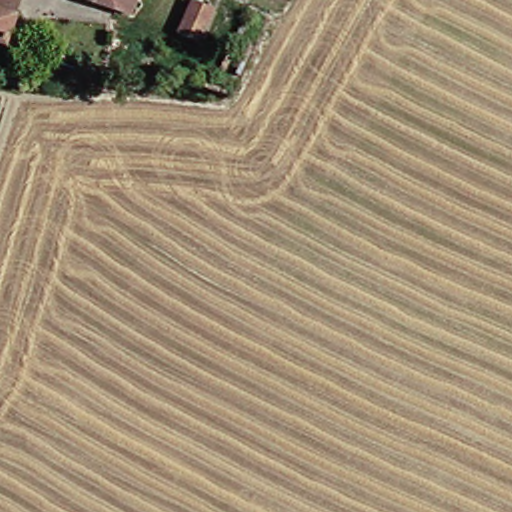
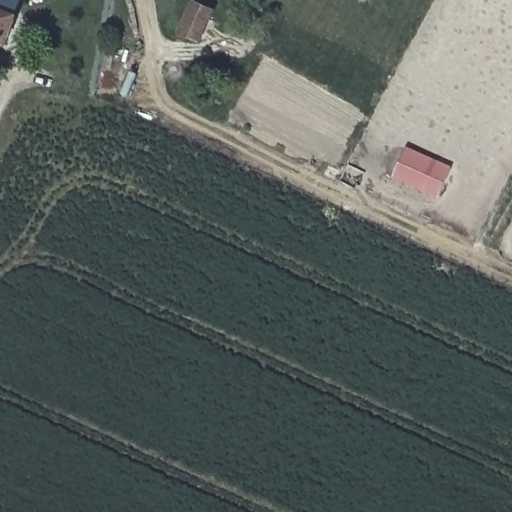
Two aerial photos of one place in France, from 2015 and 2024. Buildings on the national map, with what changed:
unchanged [(15,37),(0,32),(0,0),(28,0),(24,10),(15,37)]
demolished [(134,6),(117,0),(137,0),(134,6)]
unchanged [(182,30),(193,8),(196,0),(216,8),(213,16),(202,39),(182,30)]
new [(453,167),(439,198),(393,177),(407,147),(453,167)]

